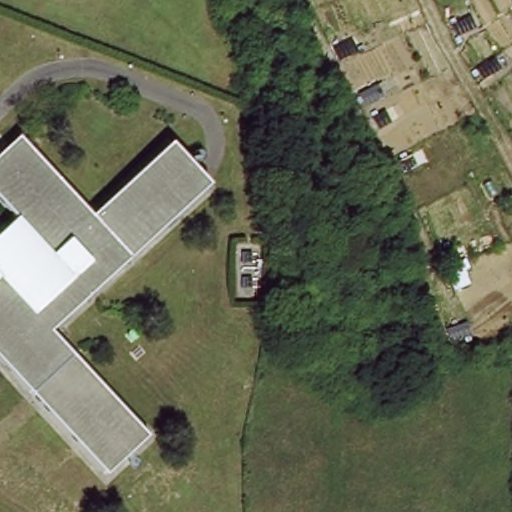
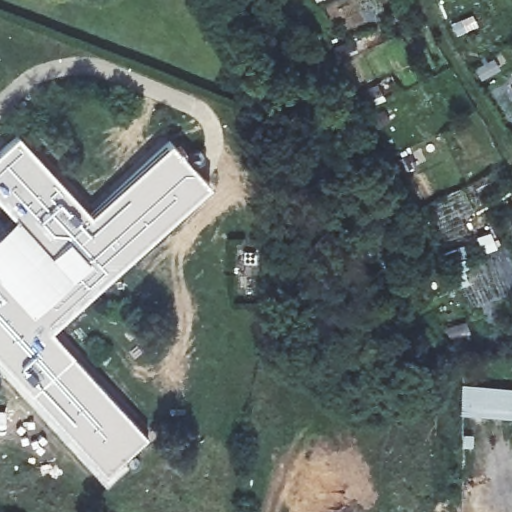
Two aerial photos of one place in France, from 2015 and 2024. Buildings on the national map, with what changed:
unchanged [(64,358),(133,439),(90,476),(21,394),(0,368),(0,229),(14,218),(0,201),(0,156),(21,140),(87,220),(170,154),(206,197),(85,294),(70,277),(26,312),(64,358)]
new [(484,377),(497,377),(497,386),(512,386),(512,418),(461,416),(463,386),(484,386),(484,377)]

